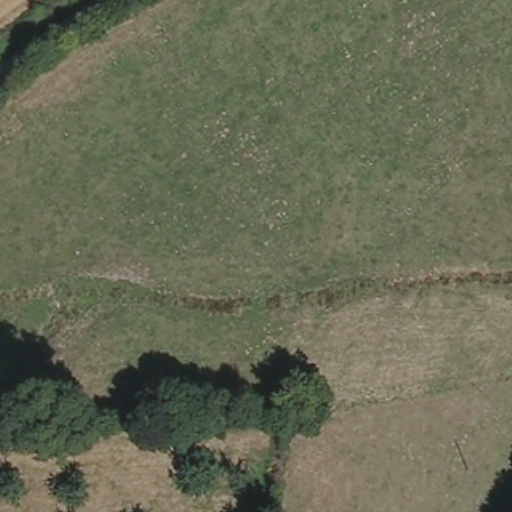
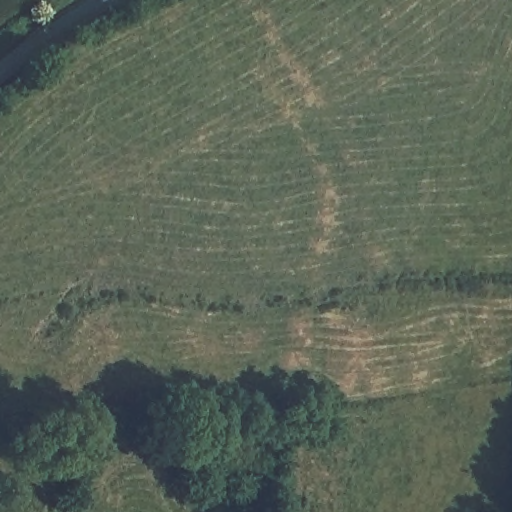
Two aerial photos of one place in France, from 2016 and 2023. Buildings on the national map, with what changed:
[]

